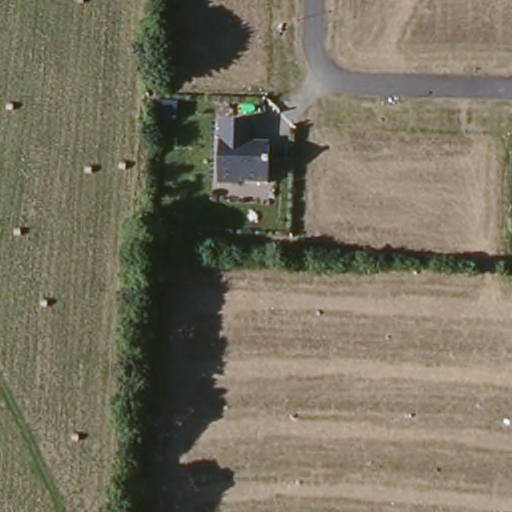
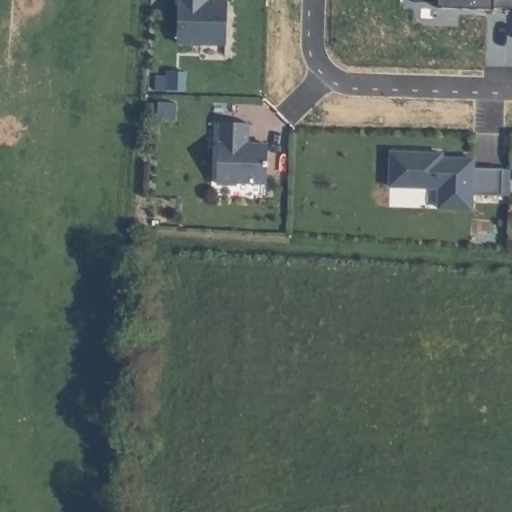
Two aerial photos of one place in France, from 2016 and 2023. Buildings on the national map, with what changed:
new [(178,48),(180,0),(210,0),(210,3),(231,3),(231,49),(178,48)]
new [(496,9),(476,8),(476,3),(463,3),(462,7),(440,7),(440,3),(415,3),(416,0),(512,0),(512,5),(496,4),(496,9)]
unchanged [(248,123),(248,143),(268,144),(266,185),(234,184),(232,187),(219,186),(222,120),(248,123)]
new [(446,153),(446,158),(477,159),(477,168),(511,168),(510,195),(475,195),(475,210),(440,209),(440,189),(390,188),(391,150),(446,153)]

